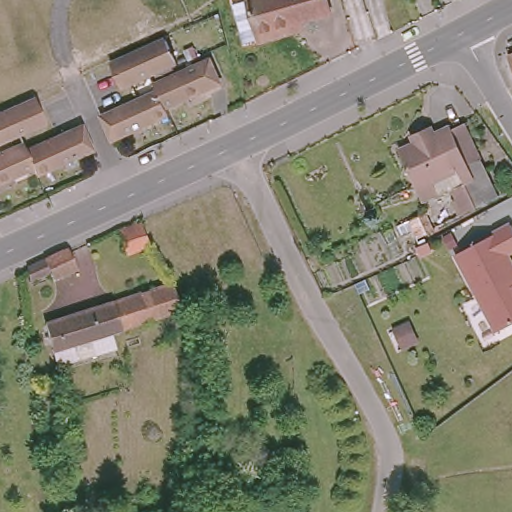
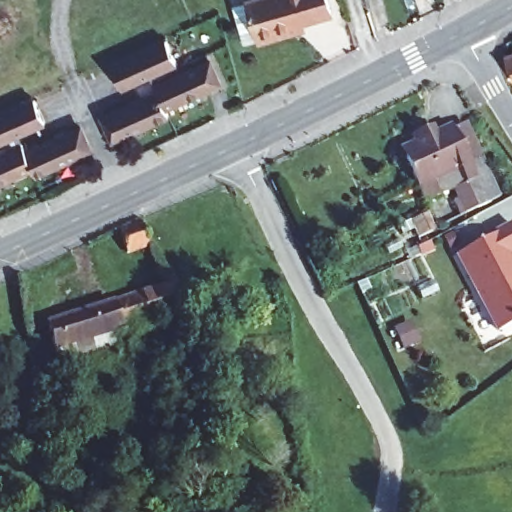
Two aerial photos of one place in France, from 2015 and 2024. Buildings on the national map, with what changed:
unchanged [(301,26),(266,36),(265,35),(250,40),(238,0),(240,0),(334,0),(336,7),(307,16),(308,24),(301,26)]
unchanged [(118,68),(117,64),(172,40),(174,43),(183,63),(127,88),(118,68)]
unchanged [(512,72),(510,64),(508,53),(512,52),(512,72)]
unchanged [(113,115),(167,90),(165,84),(217,59),(228,81),(175,105),(178,112),(123,137),(113,115)]
unchanged [(43,97),(45,101),(54,121),(0,145),(0,116),(43,97)]
unchanged [(458,197),(468,192),(461,176),(433,188),(427,177),(415,182),(397,145),(412,138),(409,131),(429,122),(432,129),(447,122),(447,124),(463,117),(479,153),(496,190),(472,200),(472,201),(462,208),(458,197)]
unchanged [(32,143),(35,149),(89,125),(99,147),(45,171),(42,164),(0,183),(0,157),(32,143)]
unchanged [(150,240),(127,248),(121,225),(143,218),(150,240)]
unchanged [(459,250),(512,222),(512,247),(507,249),(512,257),(512,320),(500,326),(459,250)]
unchanged [(73,265),(50,275),(45,264),(27,272),(25,266),(23,262),(63,244),(65,247),(73,265)]
unchanged [(110,330),(115,347),(58,363),(47,324),(112,303),(113,304),(173,284),(187,280),(192,295),(178,298),(182,308),(110,330)]

